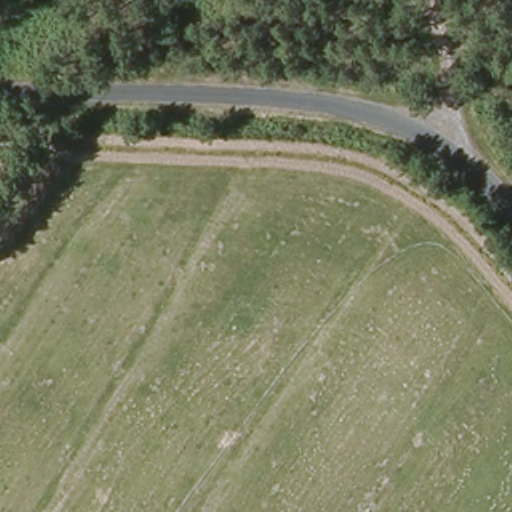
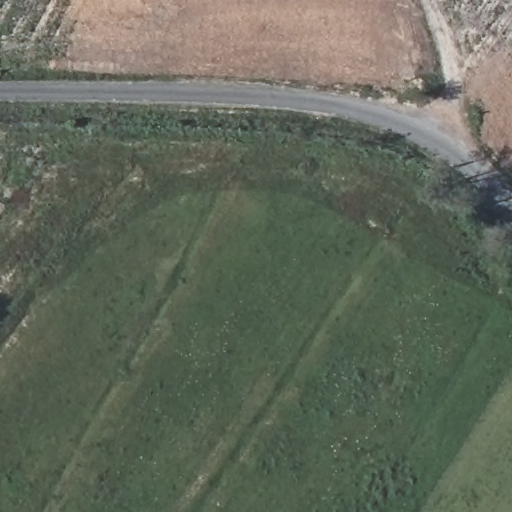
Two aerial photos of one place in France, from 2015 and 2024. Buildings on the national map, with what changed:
[]

